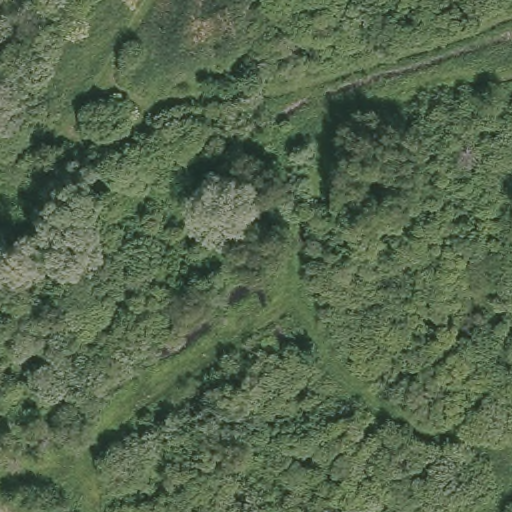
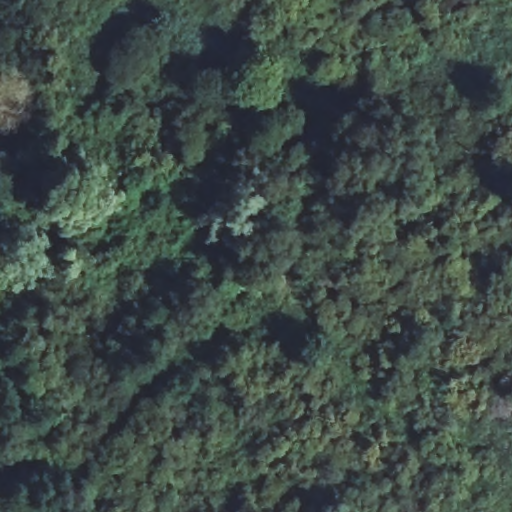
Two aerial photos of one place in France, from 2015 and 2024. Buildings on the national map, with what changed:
[]

